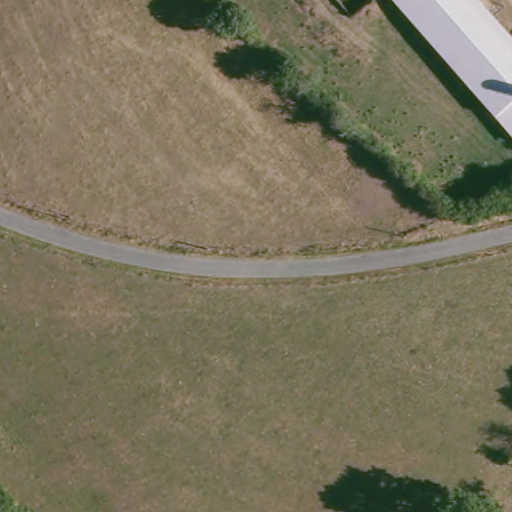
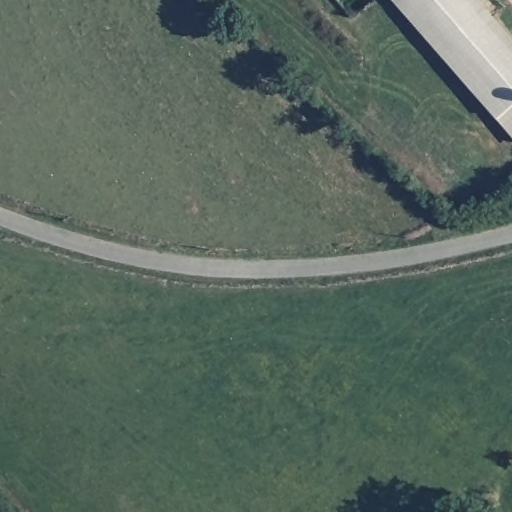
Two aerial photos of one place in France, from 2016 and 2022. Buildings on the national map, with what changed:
unchanged [(512,41),(512,139),(393,0),(475,0),(512,41)]

